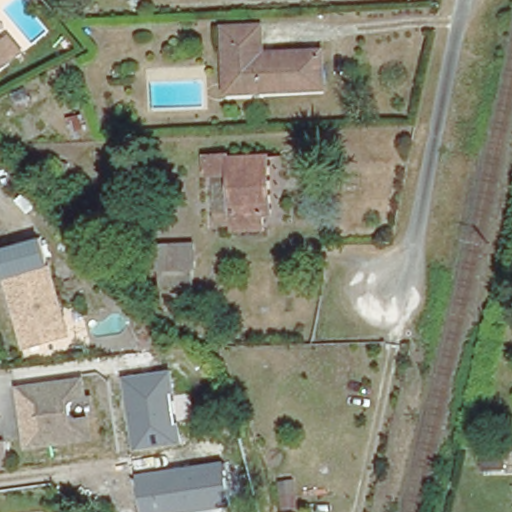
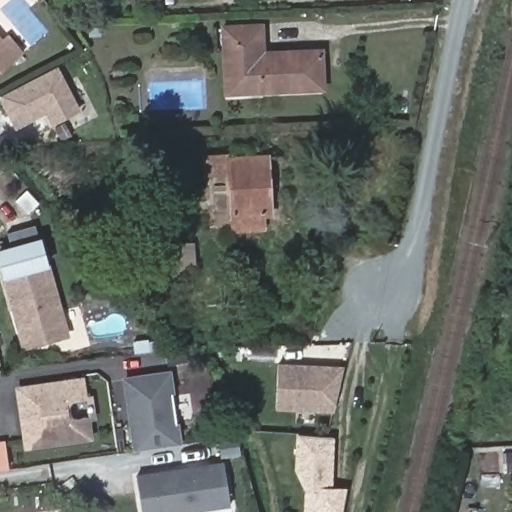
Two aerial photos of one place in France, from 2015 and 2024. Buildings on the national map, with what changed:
unchanged [(19,45),(18,46),(21,50),(16,56),(11,51),(0,61),(0,34),(6,30),(19,45)]
unchanged [(263,31),(264,58),(322,55),(324,92),(228,98),(225,32),(263,31)]
new [(58,67),(81,110),(51,126),(45,112),(16,128),(1,97),(58,67)]
unchanged [(207,174),(206,155),(228,154),(228,156),(267,154),(271,213),(262,213),(263,226),(236,228),(236,224),(219,225),(217,174),(207,174)]
unchanged [(2,248),(37,237),(64,325),(28,336),(2,248)]
unchanged [(162,290),(161,275),(159,275),(158,248),(196,246),(197,273),(193,273),(194,288),(162,290)]
new [(283,364),(343,366),(332,408),(281,407),(283,364)]
unchanged [(183,446),(135,452),(125,375),(171,369),(183,446)]
unchanged [(46,390),(58,388),(82,384),(85,405),(74,406),(70,410),(71,421),(75,423),(87,422),(90,442),(27,450),(20,394),(46,390)]
new [(345,487),(344,512),(305,512),(305,490),(299,470),(300,435),(333,436),(333,487),(345,487)]
unchanged [(7,469),(0,470),(0,442),(5,442),(7,469)]
unchanged [(194,512),(143,512),(136,475),(225,462),(232,506),(194,512)]

